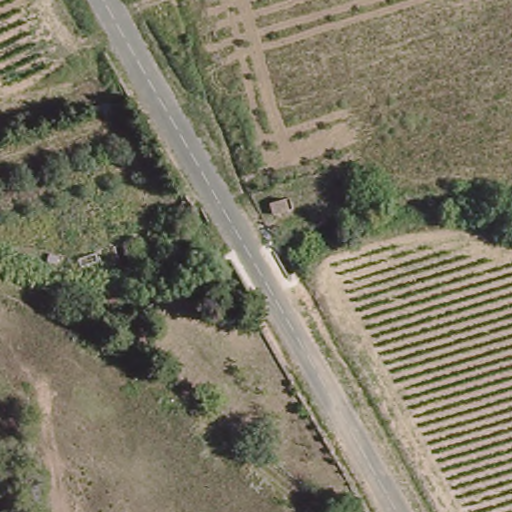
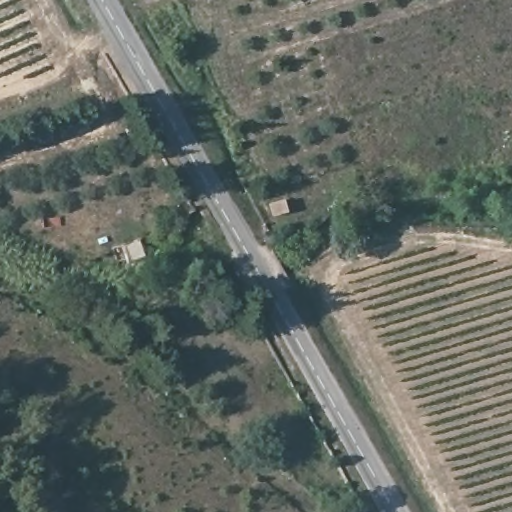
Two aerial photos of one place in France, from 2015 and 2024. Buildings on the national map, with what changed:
unchanged [(262,203),(285,196),(289,214),(269,219),(262,203)]
unchanged [(145,258),(123,265),(121,245),(141,243),(145,258)]
unchanged [(210,286),(214,298),(199,304),(195,291),(210,286)]

